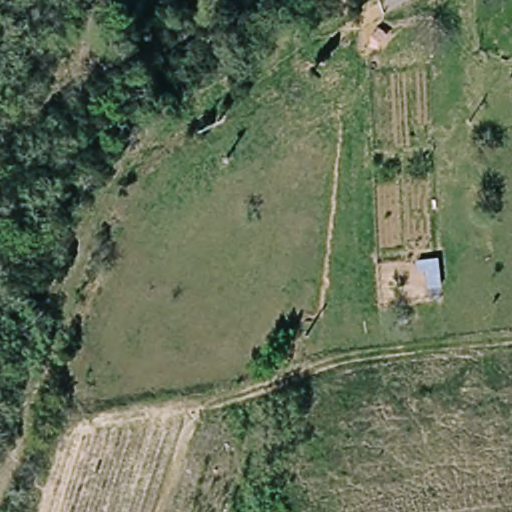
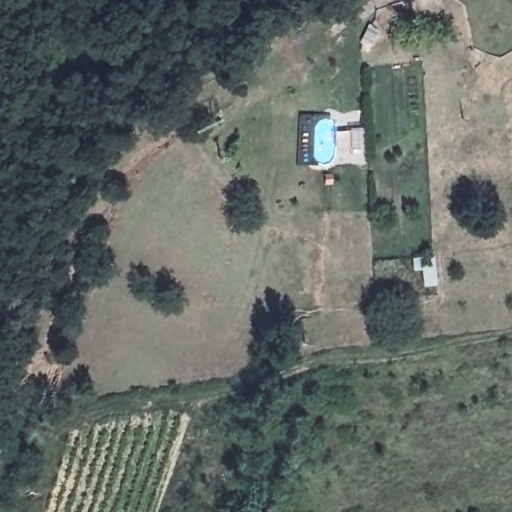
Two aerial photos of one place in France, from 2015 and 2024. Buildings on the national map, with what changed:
unchanged [(435,285),(422,288),(420,269),(413,270),(411,258),(432,257),(435,285)]

